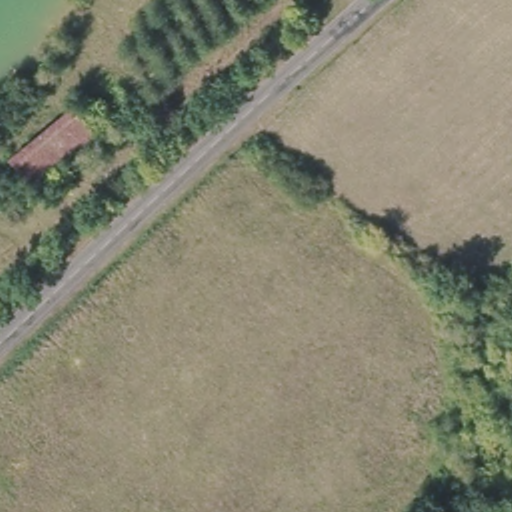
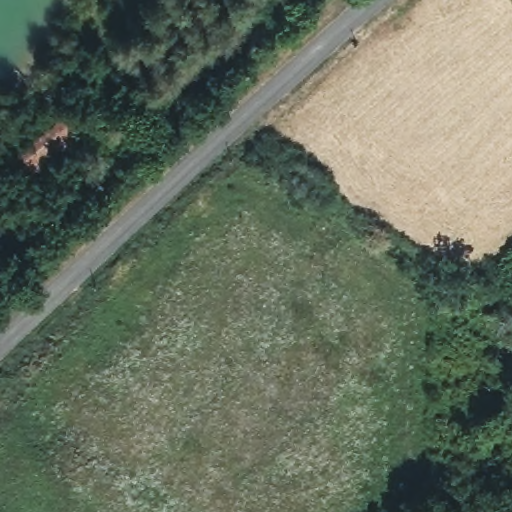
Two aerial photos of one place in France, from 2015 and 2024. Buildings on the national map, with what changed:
unchanged [(74,111),(95,137),(31,189),(10,164),(74,111)]

